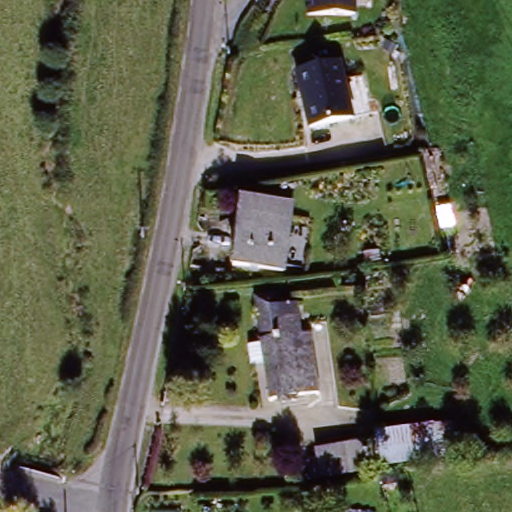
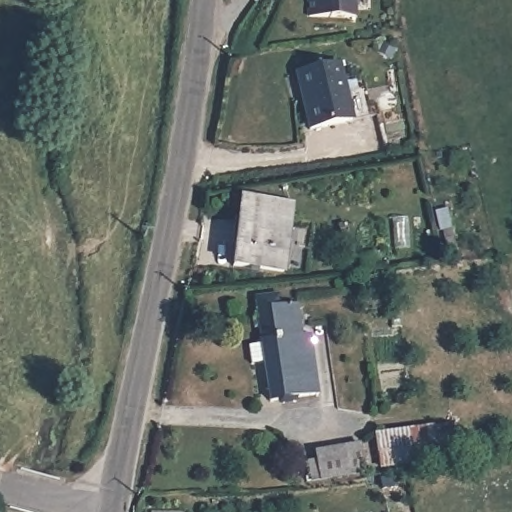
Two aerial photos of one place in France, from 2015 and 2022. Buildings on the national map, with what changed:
unchanged [(309,18),(308,0),(354,0),(355,16),(309,18)]
unchanged [(291,79),(334,68),(348,123),(305,134),(300,112),(296,98),(291,79)]
unchanged [(241,200),(291,205),(285,257),(235,252),(241,200)]
unchanged [(282,305),(285,305),(286,302),(294,300),(295,304),(297,304),(302,334),(310,333),(310,329),(314,329),(324,396),(320,397),(319,394),(275,401),(276,404),(272,404),(272,402),(267,403),(267,399),(270,399),(265,368),(262,369),(261,365),(256,367),(256,369),(252,370),(252,368),(249,368),(248,366),(252,364),(250,359),(247,359),(247,355),(249,354),(249,351),(252,350),(254,353),(260,352),(260,351),(262,349),(261,343),(259,343),(258,339),(260,340),(259,330),(255,329),(254,327),(258,324),(257,319),(253,319),(252,315),(256,314),(254,298),(250,299),(250,294),(252,294),(252,290),(255,290),(257,294),(275,290),(275,289),(278,288),(282,305)]
unchanged [(470,422),(475,455),(383,468),(374,436),(470,422)]
unchanged [(315,452),(362,445),(367,471),(320,479),(315,452)]

